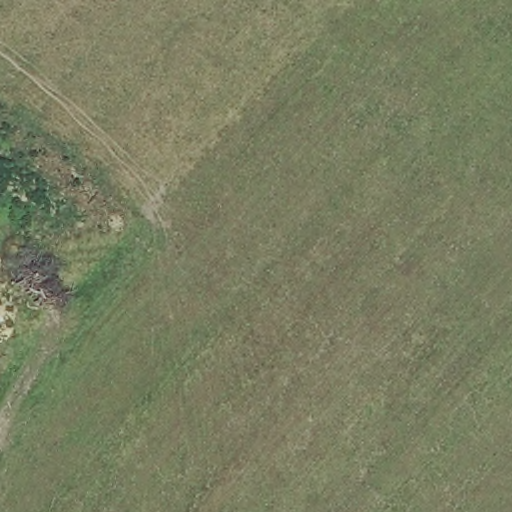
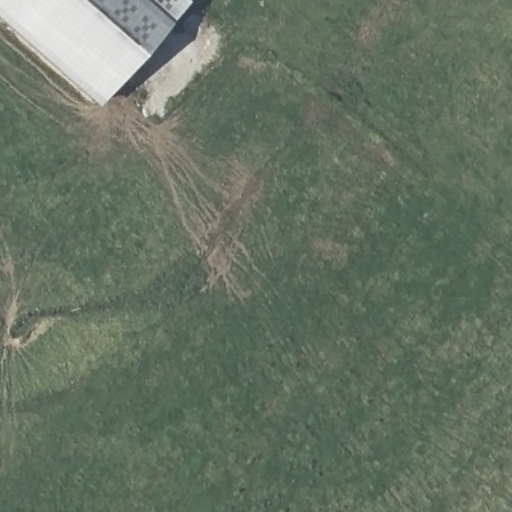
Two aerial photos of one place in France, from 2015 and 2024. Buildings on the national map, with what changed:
new [(103,106),(0,16),(0,0),(149,0),(178,25),(103,106)]

